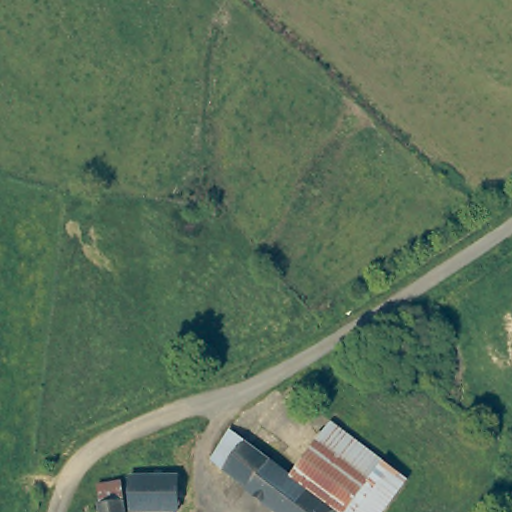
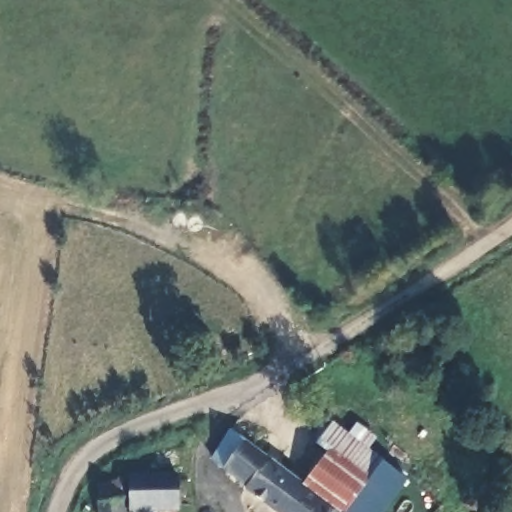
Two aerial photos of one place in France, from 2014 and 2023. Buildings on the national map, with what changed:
unchanged [(290,476),(330,422),(405,479),(380,512),(336,512),(290,476)]
unchanged [(245,488),(246,486),(211,459),(229,430),(290,476),(336,512),(277,512),(245,488)]
unchanged [(130,512),(129,475),(177,475),(177,510),(172,510),(130,512)]
unchanged [(96,485),(120,480),(124,512),(99,512),(96,485)]
unchanged [(172,510),(171,512),(130,512),(172,510)]

